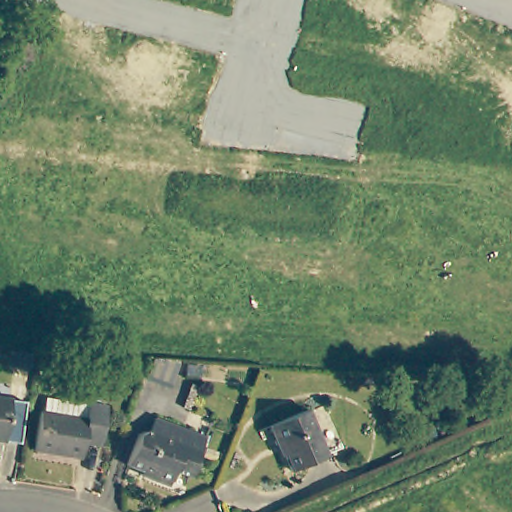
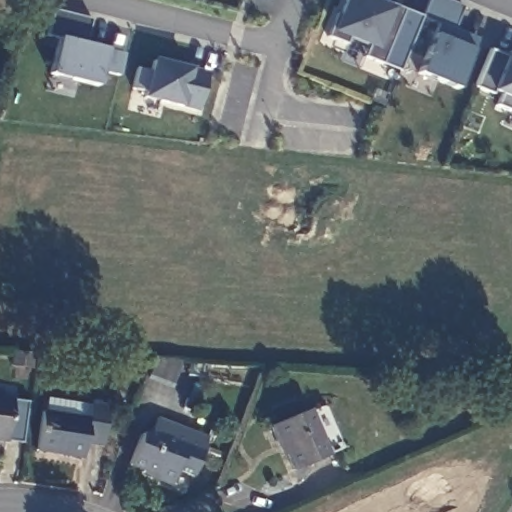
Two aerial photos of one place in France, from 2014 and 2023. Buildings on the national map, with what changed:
new [(435,28),(419,20),(396,71),(364,57),(368,50),(345,40),(343,45),(325,38),(333,15),(337,16),(345,0),(376,0),(418,16),(425,0),(444,0),(462,8),(451,30),(476,40),(471,52),(457,90),(417,73),(435,28)]
new [(101,74),(97,89),(49,75),(57,39),(45,35),(51,9),(89,19),(83,43),(107,50),(123,55),(117,77),(101,74)]
unchanged [(500,94),(491,90),(489,95),(474,88),(489,50),(507,57),(512,59),(512,113),(495,106),(500,94)]
new [(142,98),(144,94),(129,90),(134,68),(149,72),(152,59),(193,70),(208,74),(197,114),(142,98)]
unchanged [(26,339),(24,357),(2,355),(4,338),(26,339)]
unchanged [(10,399),(5,440),(0,439),(0,397),(10,399)]
unchanged [(108,407),(101,446),(84,443),(80,459),(35,451),(41,412),(86,420),(89,403),(108,407)]
unchanged [(306,412),(319,439),(336,433),(343,448),(325,456),(290,472),(277,443),(273,445),(265,427),(305,410),(306,412)]
unchanged [(205,437),(189,477),(174,472),(169,485),(155,480),(152,470),(145,469),(144,472),(127,466),(138,435),(145,432),(150,434),(155,418),(205,437)]

